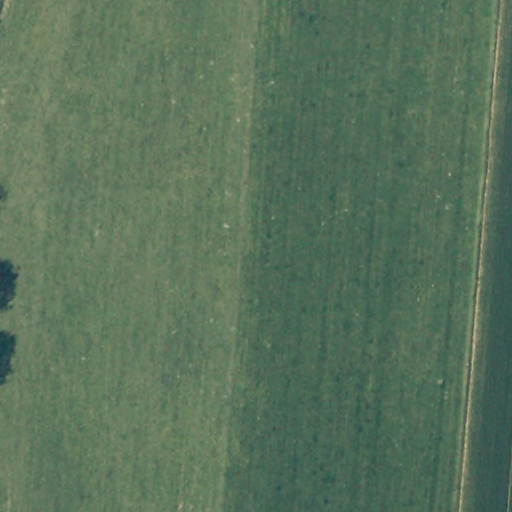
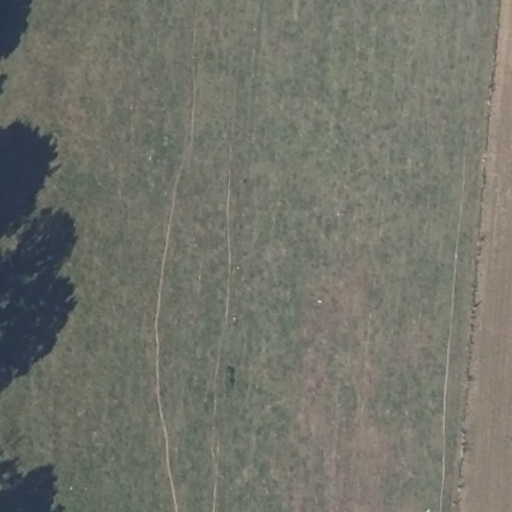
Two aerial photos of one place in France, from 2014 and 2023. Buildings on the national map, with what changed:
[]

